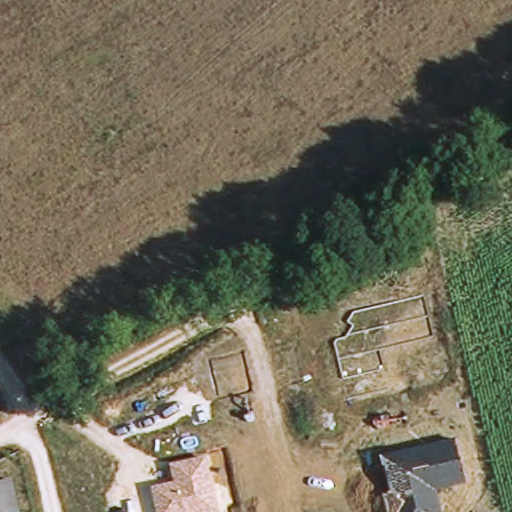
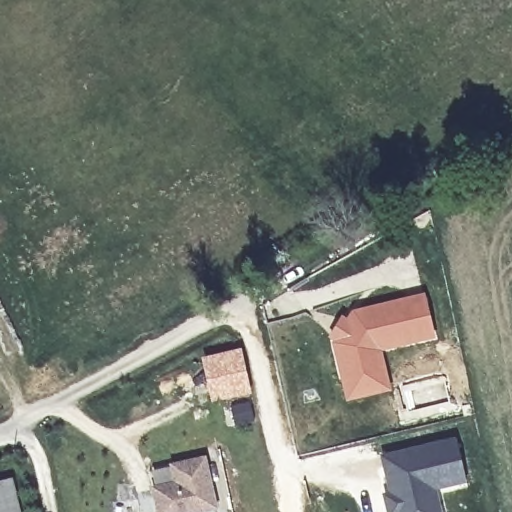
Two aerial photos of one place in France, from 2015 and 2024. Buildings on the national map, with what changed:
new [(331,340),(327,338),(340,315),(346,318),(351,310),(425,292),(435,338),(381,351),(390,390),(346,401),(331,340)]
new [(219,397),(210,359),(244,351),(252,389),(219,397)]
unchanged [(467,483),(438,489),(442,512),(387,512),(383,492),(388,491),(380,455),(458,437),(467,483)]
unchanged [(201,512),(155,512),(149,487),(175,482),(171,465),(207,456),(219,508),(201,512)]
unchanged [(4,512),(0,512),(0,495),(4,512)]

